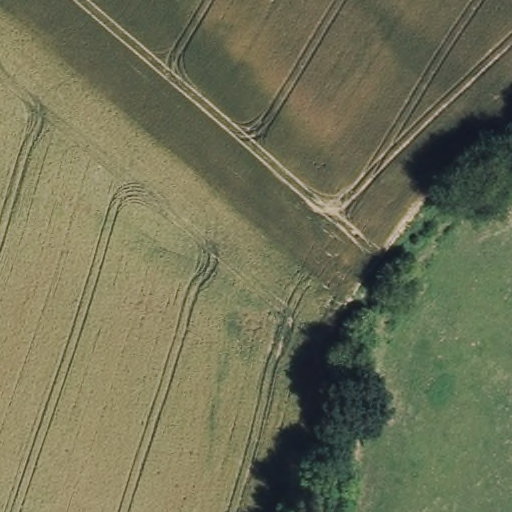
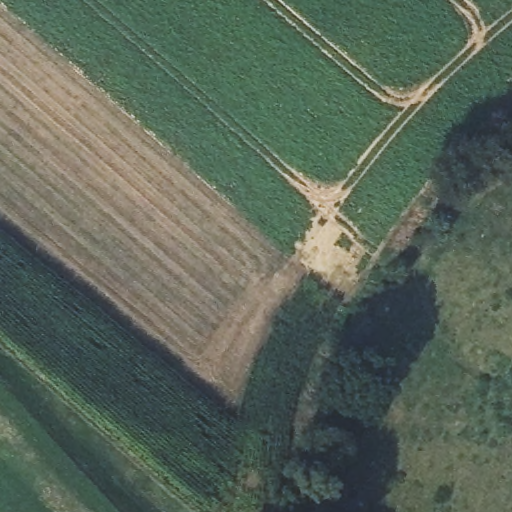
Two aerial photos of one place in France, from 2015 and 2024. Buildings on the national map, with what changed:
[]

